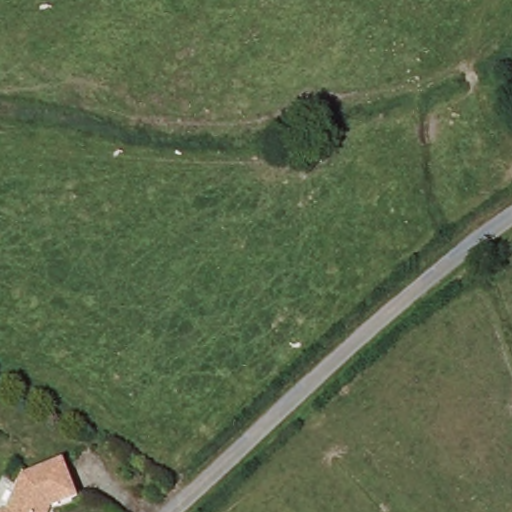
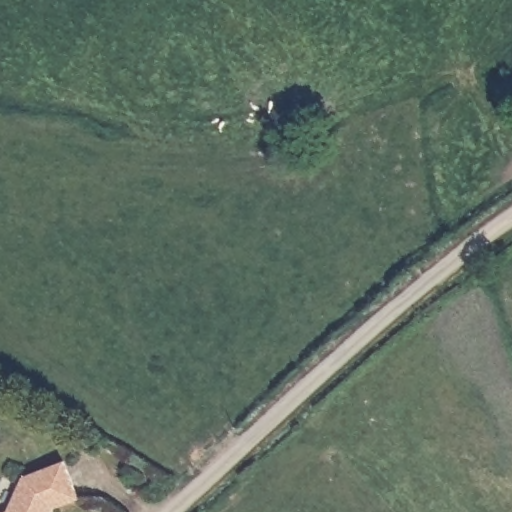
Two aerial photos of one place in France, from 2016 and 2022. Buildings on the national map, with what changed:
unchanged [(8,511),(22,476),(63,458),(80,495),(54,506),(52,512),(6,512),(8,511)]

